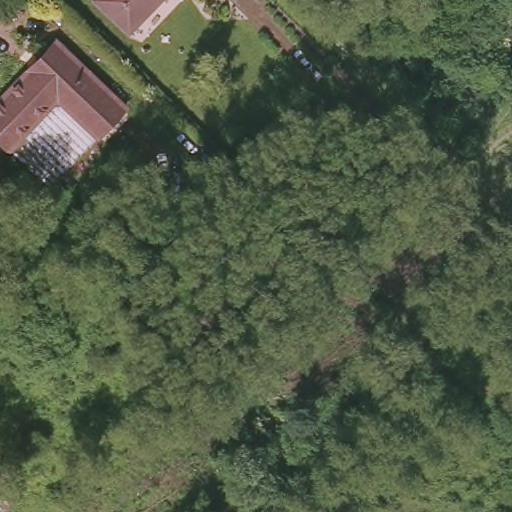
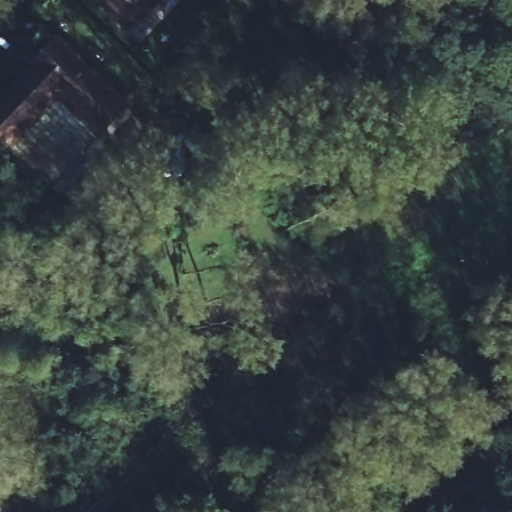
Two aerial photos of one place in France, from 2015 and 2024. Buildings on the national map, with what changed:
unchanged [(130,30),(98,0),(158,0),(130,30)]
unchanged [(91,131),(54,96),(10,144),(0,136),(0,87),(47,36),(120,102),(91,131)]
unchanged [(54,96),(91,131),(47,180),(10,144),(54,96)]

